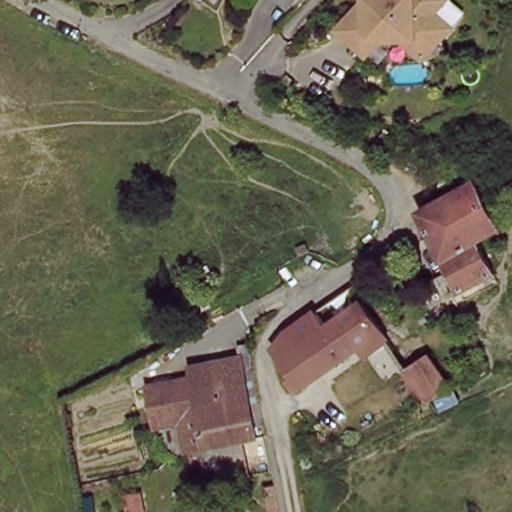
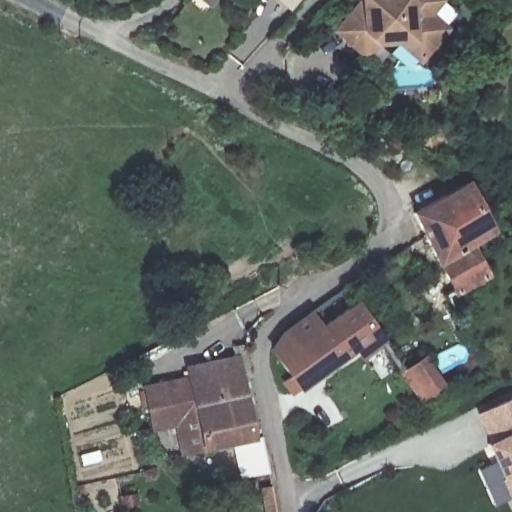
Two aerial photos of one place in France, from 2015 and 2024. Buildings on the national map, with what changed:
unchanged [(290,11),(277,0),(299,0),(290,11)]
unchanged [(400,41),(377,44),(365,57),(336,33),(363,2),(362,0),(442,0),(430,13),(448,28),(430,50),(421,60),(400,41)]
unchanged [(457,197),(470,189),(490,220),(464,235),(486,278),(461,294),(431,242),(418,219),(457,197)]
unchanged [(307,320),(317,332),(362,302),(381,332),(388,344),(372,355),(363,345),(279,401),(274,387),(287,377),(270,351),(273,343),(307,320)]
unchanged [(153,421),(143,387),(184,376),(182,367),(228,352),(240,387),(195,404),(153,421)]
unchanged [(405,375),(430,356),(451,387),(424,407),(421,402),(404,375),(405,375)]
unchanged [(208,447),(195,404),(240,387),(244,400),(255,397),(261,413),(250,417),(255,433),(208,447)]
new [(499,478),(500,476),(485,445),(488,442),(475,414),(512,396),(512,506),(499,478)]
unchanged [(188,450),(179,420),(154,427),(153,421),(195,404),(208,447),(188,450)]

